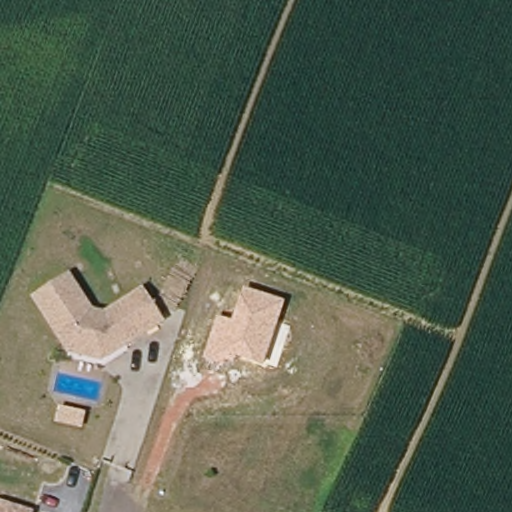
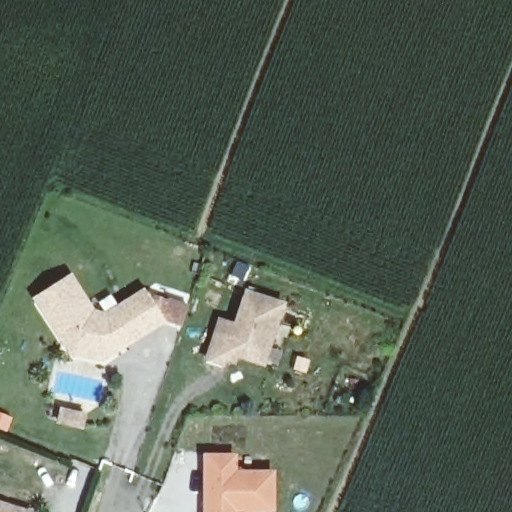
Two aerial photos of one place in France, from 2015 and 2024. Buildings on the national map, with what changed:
unchanged [(37,300),(70,277),(93,311),(106,313),(127,298),(144,287),(164,318),(146,330),(105,358),(71,351),(37,300)]
unchanged [(287,301),(263,362),(239,356),(237,364),(226,360),(224,366),(204,360),(217,318),(232,322),(245,289),(287,301)]
new [(236,455),(236,470),(274,471),(275,512),(202,512),(200,455),(236,455)]
unchanged [(1,500),(33,509),(32,512),(0,512),(0,500),(1,500)]

